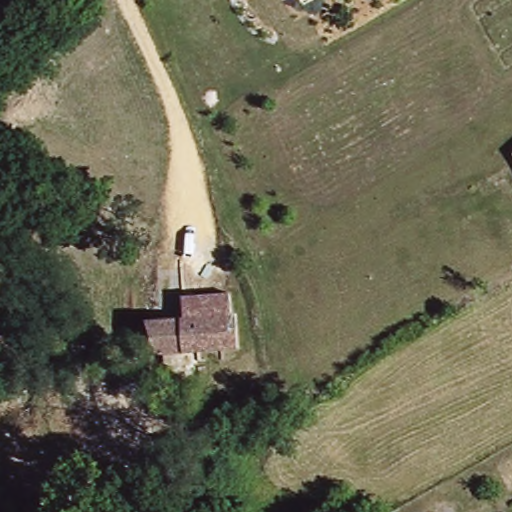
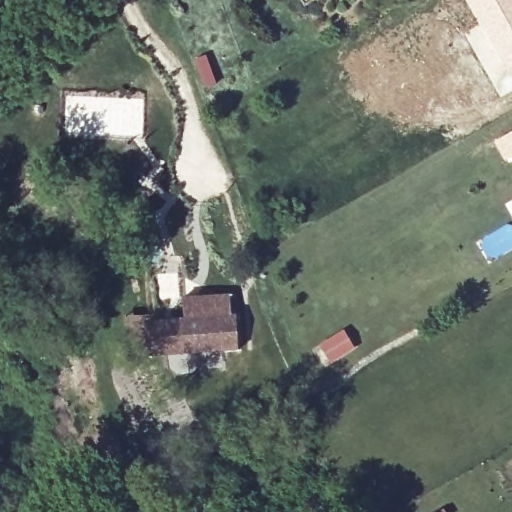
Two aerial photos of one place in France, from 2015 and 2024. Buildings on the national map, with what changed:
new [(501,97),(465,33),(479,25),(465,0),(512,0),(512,90),(501,97)]
unchanged [(230,295),(236,316),(188,320),(180,298),(230,295)]
unchanged [(239,345),(150,352),(145,322),(188,320),(236,316),(239,345)]
unchanged [(225,457),(256,438),(262,450),(231,467),(225,457)]

